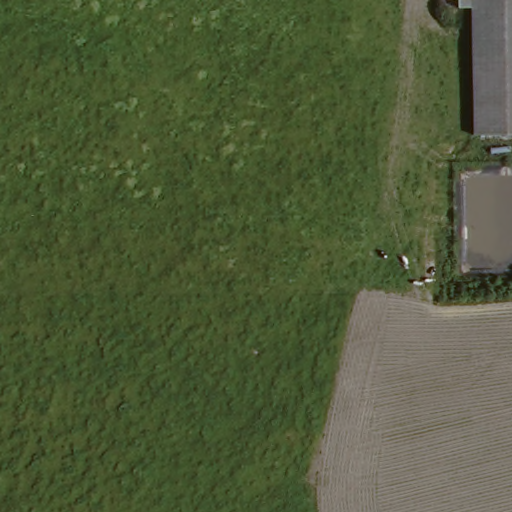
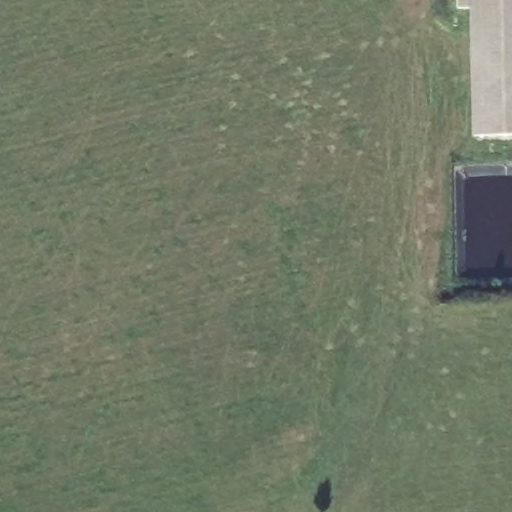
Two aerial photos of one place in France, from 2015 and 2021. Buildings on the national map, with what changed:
unchanged [(467,10),(452,9),(453,0),(512,0),(512,135),(468,135),(467,10)]

